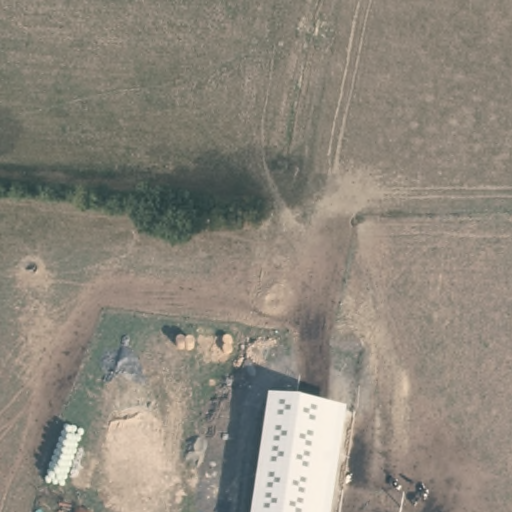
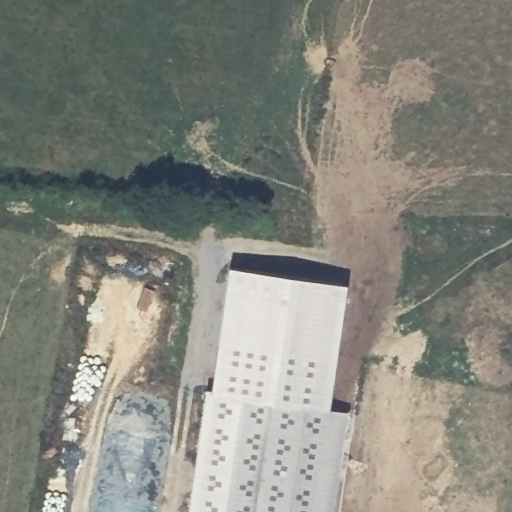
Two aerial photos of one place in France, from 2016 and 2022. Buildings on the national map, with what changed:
new [(210,392),(227,267),(346,284),(328,408),(268,399),(252,512),(188,512),(205,391),(210,392)]
unchanged [(346,411),(332,512),(252,512),(268,399),(346,411)]

